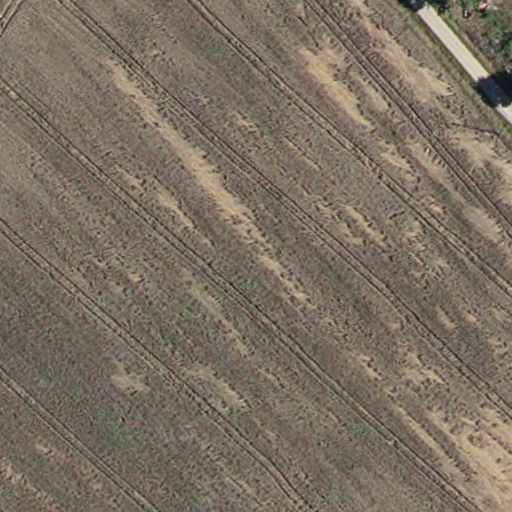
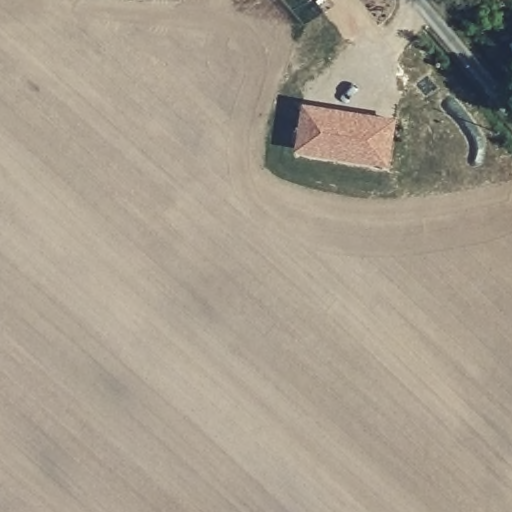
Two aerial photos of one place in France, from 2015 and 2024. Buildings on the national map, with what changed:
new [(298,154),(305,104),(393,119),(390,168),(298,154)]

